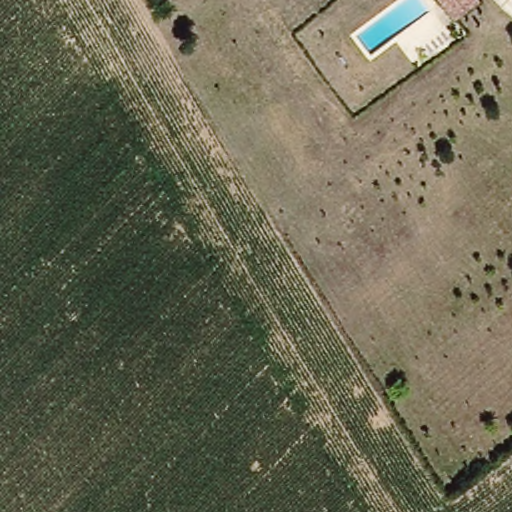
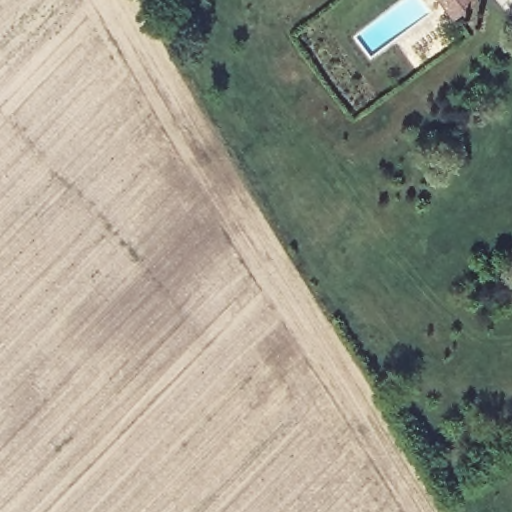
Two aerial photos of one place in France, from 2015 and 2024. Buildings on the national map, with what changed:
unchanged [(468,0),(475,10),(448,26),(431,0),(468,0)]

